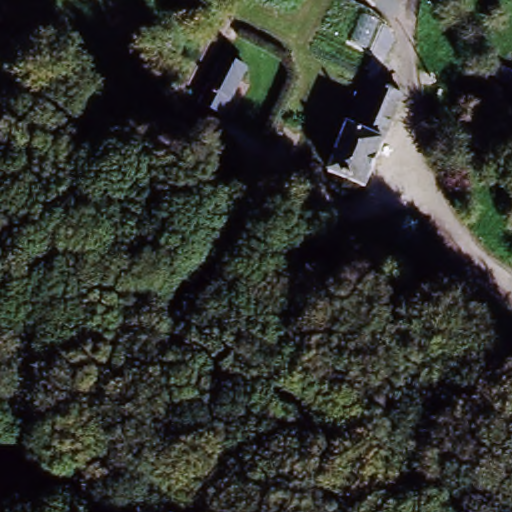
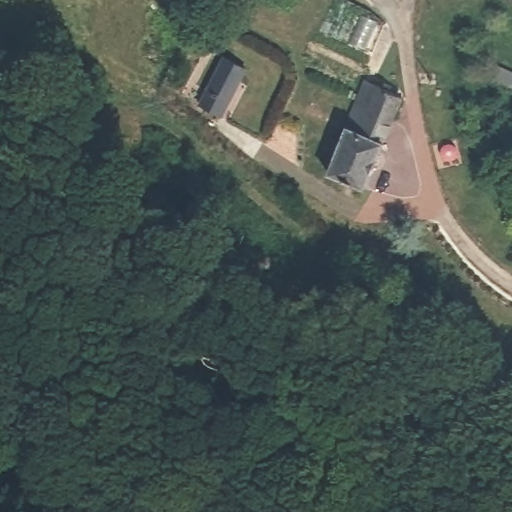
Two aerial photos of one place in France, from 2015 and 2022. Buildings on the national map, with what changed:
unchanged [(241,68),(217,115),(196,106),(224,59),(241,68)]
unchanged [(367,82),(401,98),(363,185),(328,170),(367,82)]
unchanged [(477,316),(467,327),(446,307),(455,298),(477,316)]

